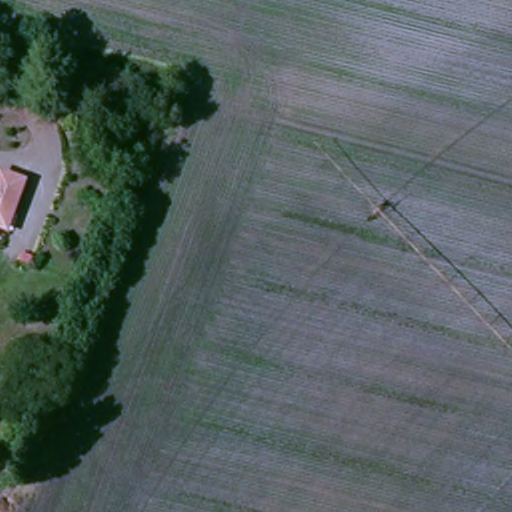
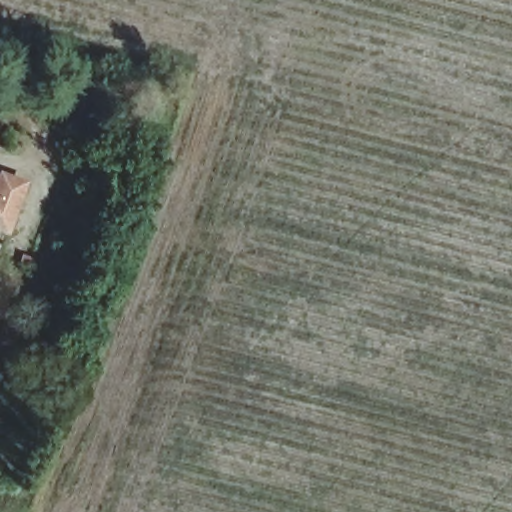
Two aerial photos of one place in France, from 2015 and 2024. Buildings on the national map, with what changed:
unchanged [(9,180),(31,188),(9,238),(0,233),(0,196),(1,197),(9,180)]

